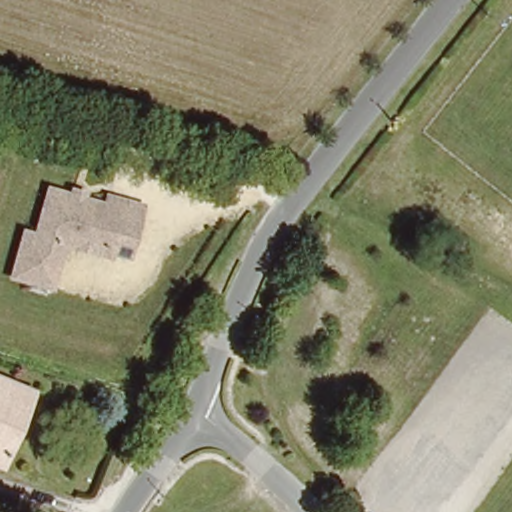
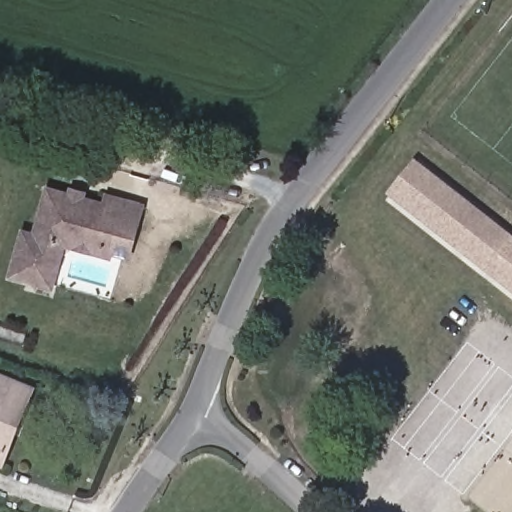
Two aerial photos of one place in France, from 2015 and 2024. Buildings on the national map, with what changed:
new [(386,195),(414,159),(512,236),(512,293),(386,195)]
unchanged [(68,243),(55,286),(15,274),(29,229),(40,232),(54,186),(111,204),(114,195),(149,205),(133,256),(113,250),(111,255),(68,243)]
unchanged [(0,453),(0,380),(28,393),(0,453)]

